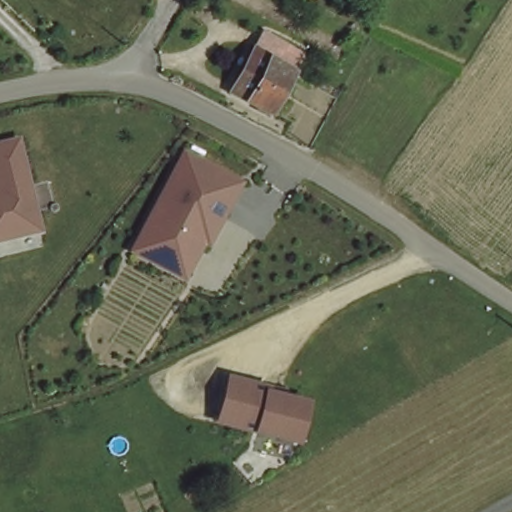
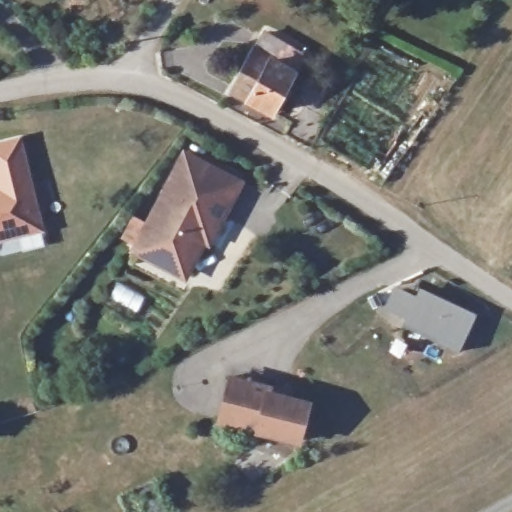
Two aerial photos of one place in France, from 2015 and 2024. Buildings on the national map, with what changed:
unchanged [(308,57),(268,116),(226,90),(265,33),(308,57)]
unchanged [(20,126),(43,225),(0,239),(0,130),(20,126)]
unchanged [(182,147),(244,174),(187,266),(135,238),(182,147)]
new [(458,351),(402,325),(405,318),(382,306),(392,285),(415,295),(419,286),(476,313),(458,351)]
unchanged [(240,375),(260,380),(258,385),(299,395),(290,434),(228,419),(240,375)]

